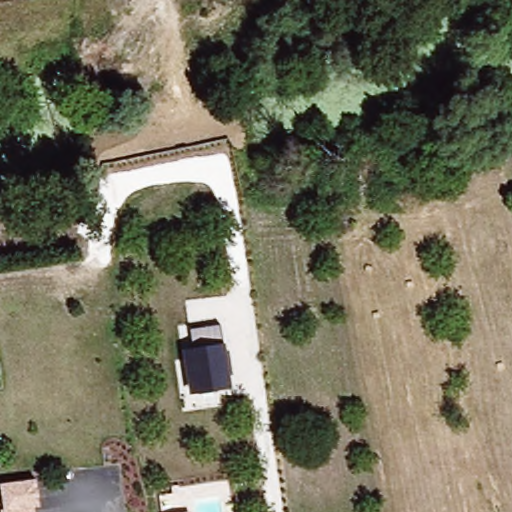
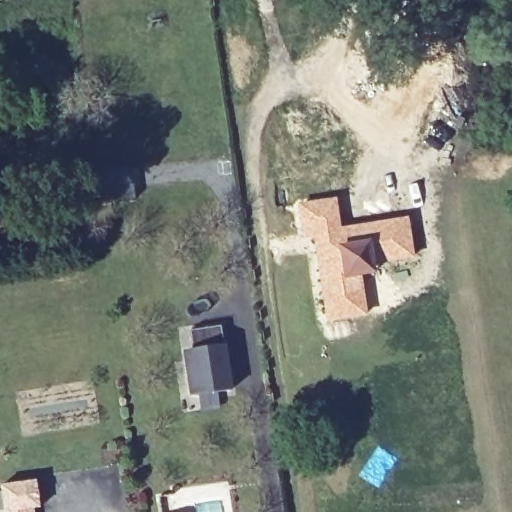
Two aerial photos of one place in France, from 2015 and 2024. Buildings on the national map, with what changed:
new [(336,197),(341,226),(408,215),(415,257),(374,265),(375,274),(361,276),(368,315),(326,323),(311,239),(302,240),(297,203),(336,197)]
unchanged [(231,390),(190,396),(184,352),(195,350),(191,331),(220,326),(231,390)]
unchanged [(0,477),(32,473),(35,507),(30,507),(31,512),(0,512),(0,477)]

